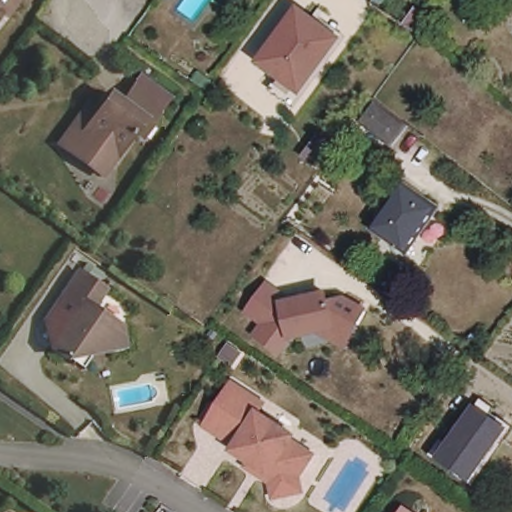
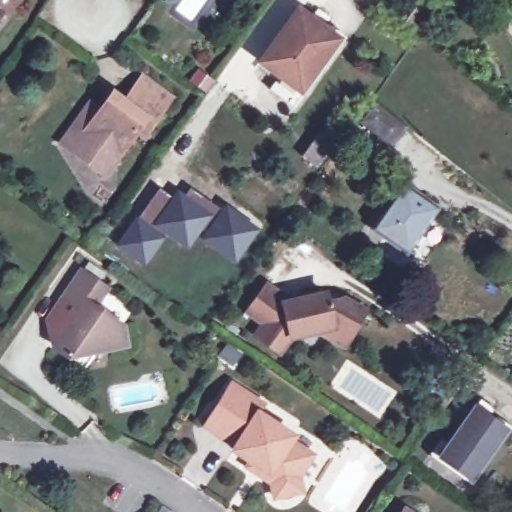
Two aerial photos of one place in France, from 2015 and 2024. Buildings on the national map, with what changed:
unchanged [(2,11),(0,10),(0,0),(9,0),(2,11)]
unchanged [(418,23),(402,11),(410,0),(421,0),(422,0),(416,9),(425,15),(418,23)]
unchanged [(271,82),(280,68),(260,55),(294,2),(317,16),(334,27),(327,37),(299,80),(290,94),(271,82)]
unchanged [(140,136),(134,131),(115,157),(103,175),(58,144),(87,103),(97,110),(110,93),(122,102),(131,89),(140,77),(168,97),(160,108),(150,121),(140,136)]
unchanged [(361,113),(376,90),(405,115),(390,136),(361,113)]
new [(327,123),(344,137),(317,169),(300,156),(327,123)]
unchanged [(399,184),(435,210),(402,253),(367,226),(399,184)]
new [(159,187),(170,195),(177,187),(184,193),(190,186),(220,207),(197,238),(187,251),(165,236),(142,266),(114,245),(159,187)]
new [(220,207),(225,202),(260,229),(234,265),(197,238),(220,207)]
unchanged [(66,351),(49,339),(75,301),(61,292),(78,267),(103,283),(90,301),(120,321),(122,341),(91,347),(81,362),(66,351)]
unchanged [(328,292),(367,314),(346,350),(317,334),(292,339),(280,357),(251,338),(260,325),(242,313),(267,282),(285,300),(328,292)]
unchanged [(245,461),(228,449),(230,445),(205,428),(200,426),(214,405),(227,384),(259,404),(254,412),(289,435),(286,440),(308,454),(295,476),(297,491),(269,497),(268,491),(266,482),(242,466),(245,461)]
unchanged [(473,403),(512,431),(472,485),(436,459),(473,403)]
unchanged [(414,512),(399,512),(404,505),(414,512)]
new [(167,512),(169,509),(173,512),(167,512)]

